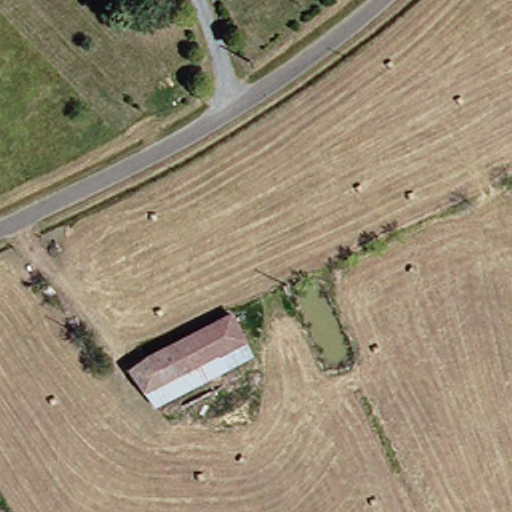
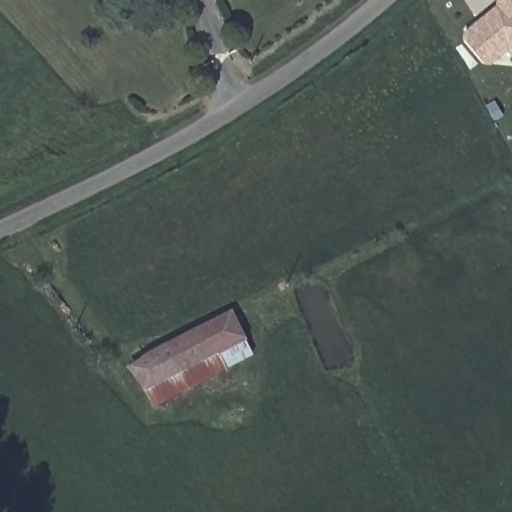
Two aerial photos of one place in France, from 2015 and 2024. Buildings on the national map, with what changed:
new [(478,21),(490,11),(496,6),(497,6),(497,0),(512,0),(512,44),(508,44),(489,61),(482,60),(463,38),(465,33),(478,21)]
unchanged [(234,339),(242,353),(144,403),(133,387),(117,361),(221,309),(234,339)]

